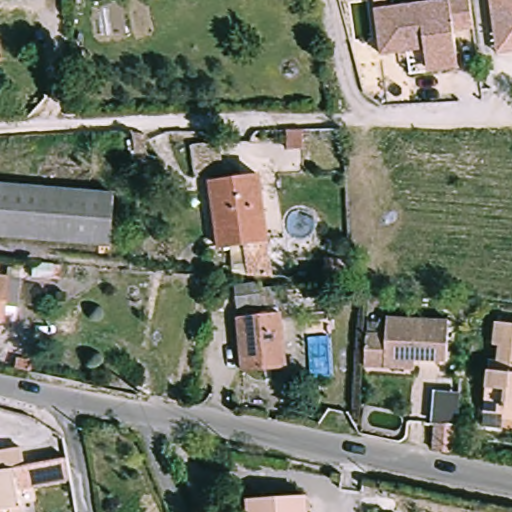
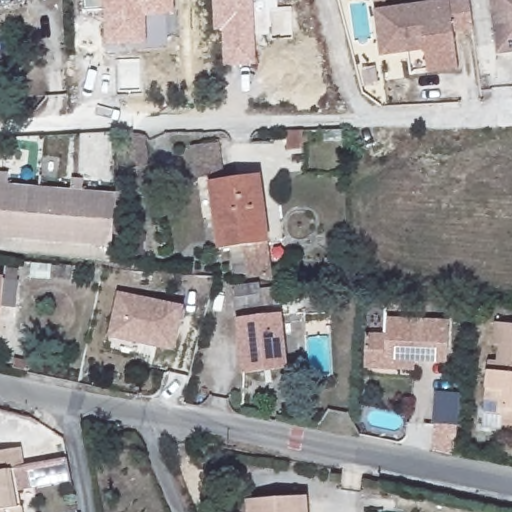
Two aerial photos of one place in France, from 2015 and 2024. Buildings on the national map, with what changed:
new [(146,18),(148,44),(106,45),(104,9),(84,10),(84,0),(176,0),(176,16),(146,18)]
new [(225,66),(223,30),(215,31),(213,0),(254,0),(257,64),(225,66)]
unchanged [(455,34),(458,70),(426,73),(422,50),(379,55),(375,9),(441,0),(468,0),(474,31),(455,34)]
unchanged [(495,54),(489,0),(512,0),(512,52),(495,54)]
new [(217,142),(222,175),(195,179),(190,146),(217,142)]
unchanged [(269,244),(220,254),(207,187),(256,177),(269,244)]
unchanged [(0,235),(0,183),(116,190),(115,245),(0,235)]
unchanged [(0,306),(0,277),(19,279),(16,308),(0,306)]
unchanged [(238,313),(234,282),(261,279),(263,294),(289,291),(291,305),(238,313)]
new [(118,291),(183,304),(174,348),(109,335),(118,291)]
unchanged [(288,368),(247,376),(236,322),(277,313),(288,368)]
unchanged [(507,414),(506,424),(485,422),(487,403),(491,354),(499,354),(501,337),(496,336),(498,314),(512,315),(512,414),(507,414)]
unchanged [(388,372),(367,371),(368,343),(369,336),(390,337),(391,319),(453,322),(451,364),(419,363),(419,373),(388,372)]
unchanged [(29,371),(13,368),(15,358),(32,361),(29,371)]
unchanged [(464,431),(462,449),(455,456),(435,451),(439,424),(464,427),(464,431)]
unchanged [(0,454),(25,449),(28,463),(29,464),(8,468),(12,488),(20,486),(24,505),(25,512),(0,512),(0,454)]
unchanged [(28,463),(60,456),(63,476),(20,485),(20,486),(12,488),(8,468),(29,464),(28,463)]
unchanged [(248,499),(306,496),(307,512),(249,512),(248,499)]

